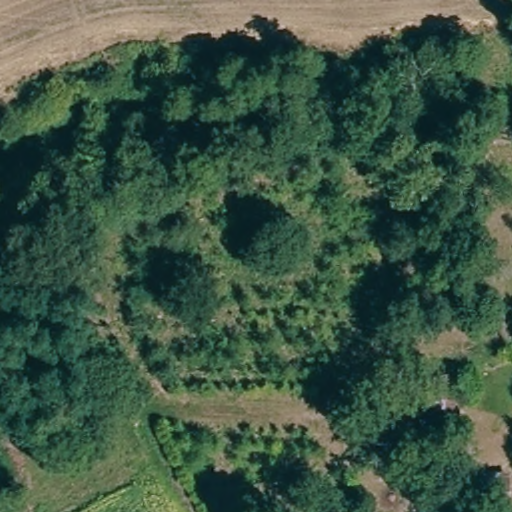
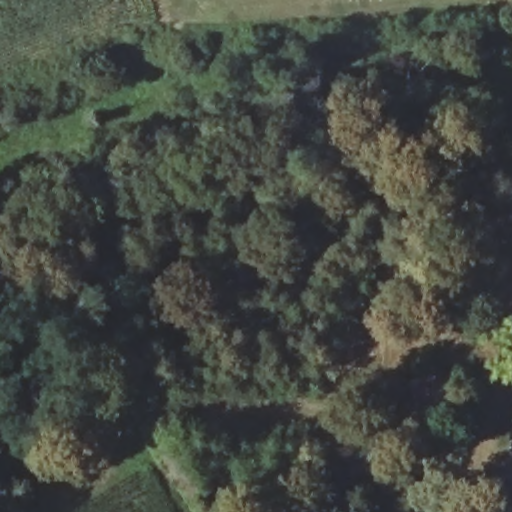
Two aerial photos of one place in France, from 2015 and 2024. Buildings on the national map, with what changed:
unchanged [(448,365),(454,407),(422,412),(416,370),(448,365)]

